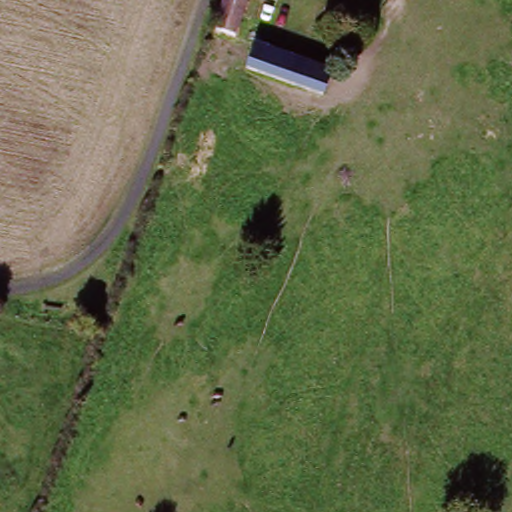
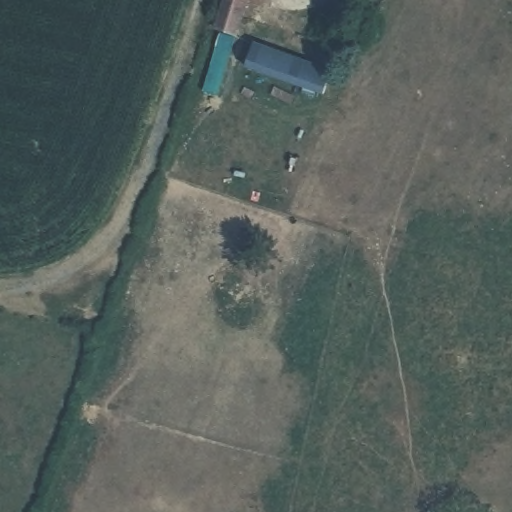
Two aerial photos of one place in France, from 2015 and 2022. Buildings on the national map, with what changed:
unchanged [(223,0),(245,0),(239,17),(247,20),(240,42),(211,32),(223,0)]
unchanged [(325,102),(246,71),(254,48),(335,79),(325,102)]

